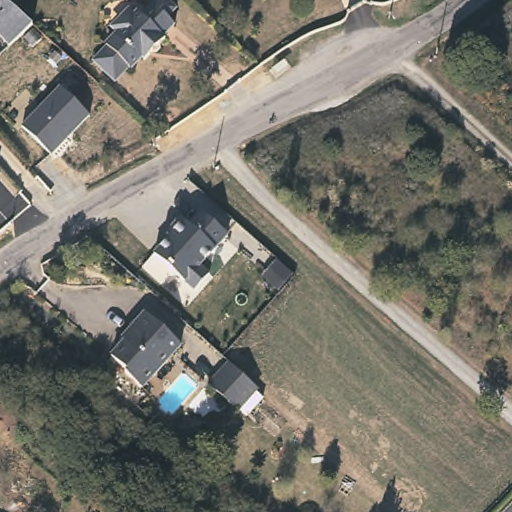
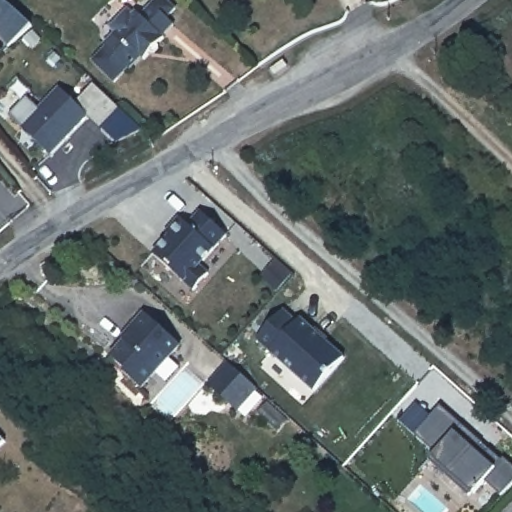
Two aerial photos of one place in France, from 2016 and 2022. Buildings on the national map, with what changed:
unchanged [(9,45),(0,33),(0,0),(9,0),(34,22),(9,45)]
unchanged [(170,17),(178,25),(168,35),(172,40),(152,61),(147,56),(119,84),(94,60),(107,47),(104,44),(120,29),(116,23),(116,17),(122,11),(128,11),(133,12),(139,6),(143,11),(154,0),(169,0),(177,9),(170,17)]
unchanged [(89,115),(51,155),(24,128),(59,89),(89,115)]
unchanged [(193,225),(204,211),(229,235),(203,265),(211,272),(196,290),(154,255),(180,218),(193,225)]
new [(271,351),(255,339),(283,308),(297,321),(300,317),(344,355),(313,388),(271,351)]
unchanged [(137,325),(135,322),(139,316),(144,311),(146,314),(181,346),(176,351),(150,380),(145,386),(125,368),(128,365),(114,351),(116,349),(137,325)]
unchanged [(256,383),(263,390),(244,410),(218,386),(238,365),(256,383)]
new [(500,495),(484,479),(469,496),(428,461),(437,451),(416,433),(441,405),(463,424),(461,427),(497,457),(500,455),(512,466),(512,480),(500,495)]

